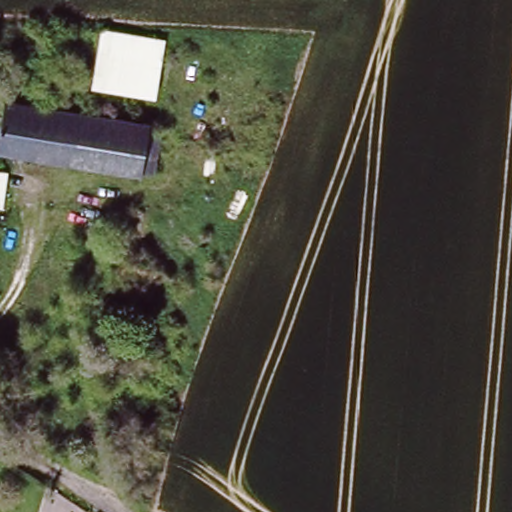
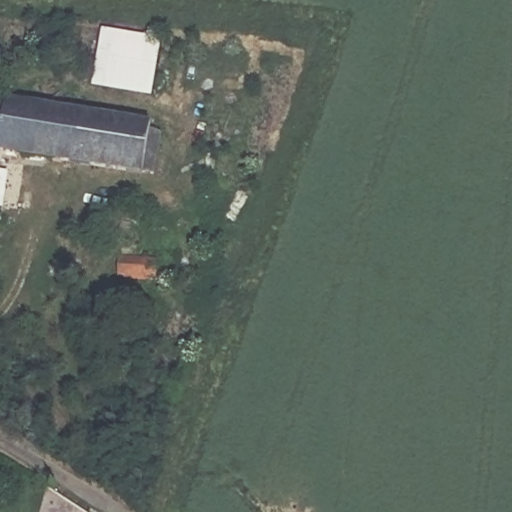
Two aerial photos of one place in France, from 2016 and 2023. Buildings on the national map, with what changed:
unchanged [(98,35),(158,45),(148,99),(88,87),(98,35)]
unchanged [(11,104),(13,97),(151,122),(149,130),(163,132),(156,171),(143,169),(143,172),(0,147),(0,107),(1,101),(11,104)]
unchanged [(100,510),(102,512),(99,512),(100,510)]

